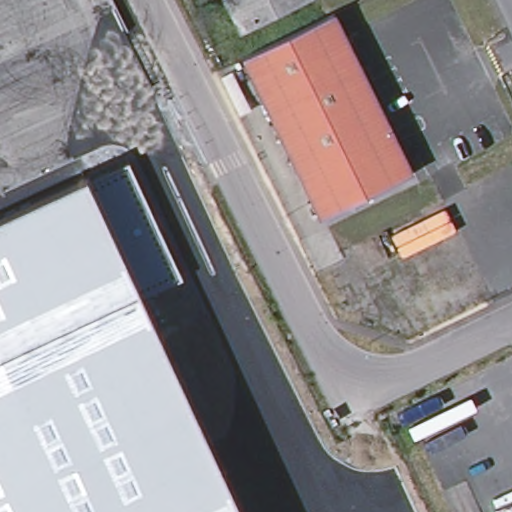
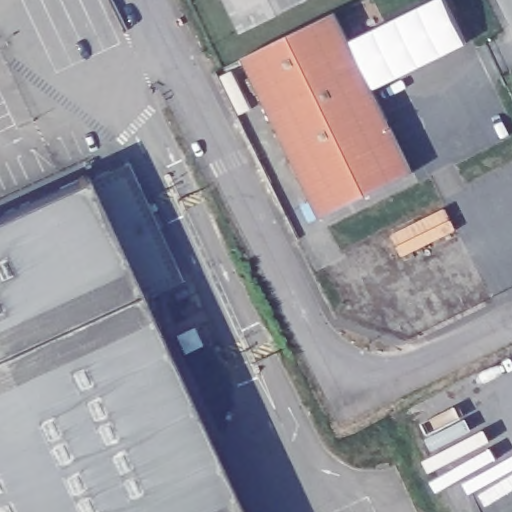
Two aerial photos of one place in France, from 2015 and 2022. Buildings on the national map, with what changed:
unchanged [(224,0),(301,0),(240,31),(224,0)]
new [(448,0),(467,38),(372,84),(350,37),(426,0),(448,0)]
unchanged [(335,7),(414,169),(322,213),(243,52),(335,7)]
unchanged [(92,181),(129,163),(180,277),(142,290),(245,512),(0,512),(0,217),(90,175),(92,181)]

